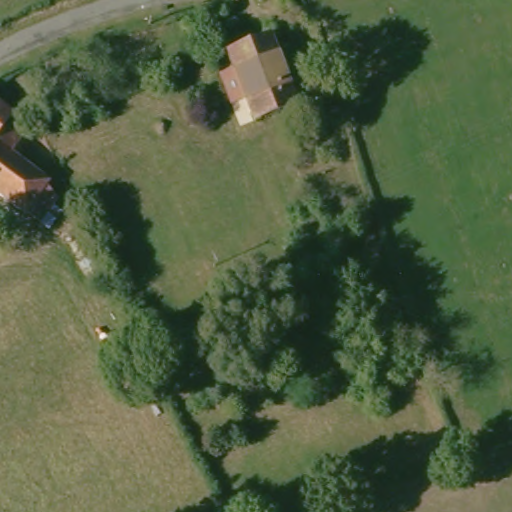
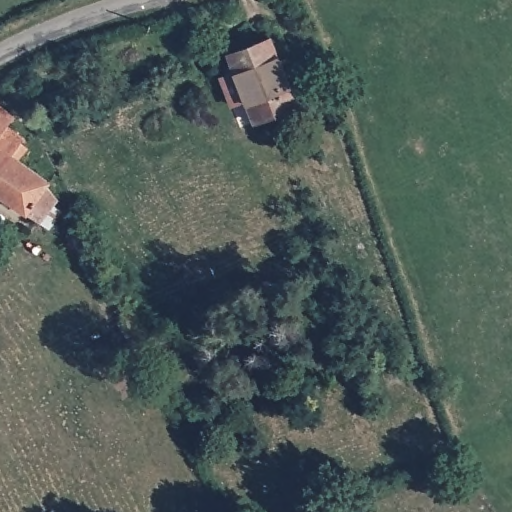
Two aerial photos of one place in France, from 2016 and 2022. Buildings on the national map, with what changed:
unchanged [(262,117),(257,107),(253,96),(242,100),(239,102),(227,72),(228,72),(240,67),(233,49),(274,35),(296,92),(300,102),(262,117)]
unchanged [(54,227),(45,237),(40,232),(0,200),(0,97),(20,112),(7,127),(26,142),(12,162),(50,191),(45,197),(61,209),(48,223),(54,227)]

